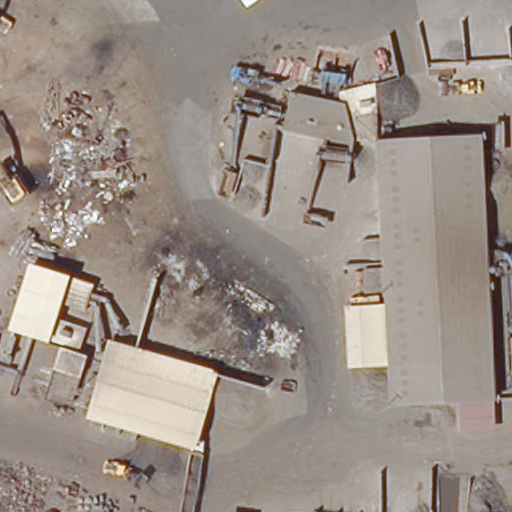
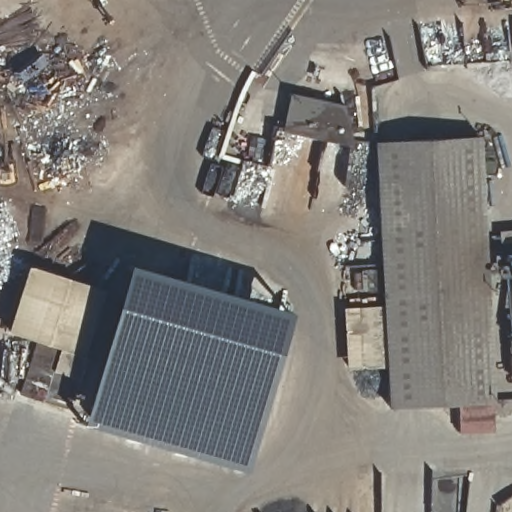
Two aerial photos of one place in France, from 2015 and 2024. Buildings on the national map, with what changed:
unchanged [(289,92),(340,102),(337,92),(374,83),(376,138),(373,138),(373,144),(354,140),(352,146),(281,133),(289,92)]
unchanged [(376,138),(481,132),(493,394),(389,397),(387,367),(383,304),(373,144),(373,138),(376,138)]
unchanged [(71,276),(95,284),(85,311),(61,304),(58,317),(86,328),(79,350),(78,353),(86,356),(80,380),(70,409),(43,400),(52,372),(61,347),(48,343),(6,331),(28,263),(71,276)]
new [(218,371),(107,340),(129,263),(288,309),(243,464),(194,450),(218,371)]
unchanged [(383,304),(387,367),(346,368),(343,307),(383,304)]
unchanged [(107,340),(218,371),(194,450),(84,420),(107,340)]

